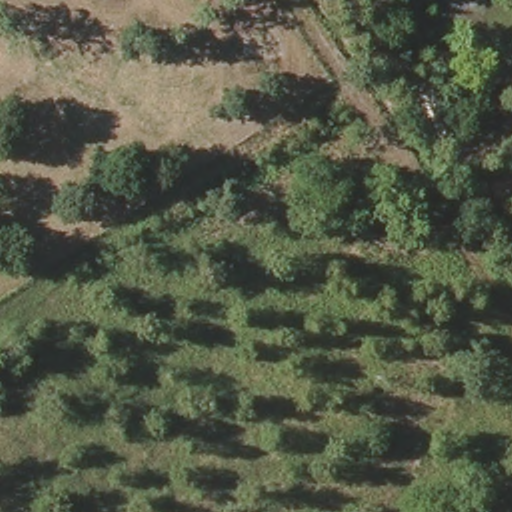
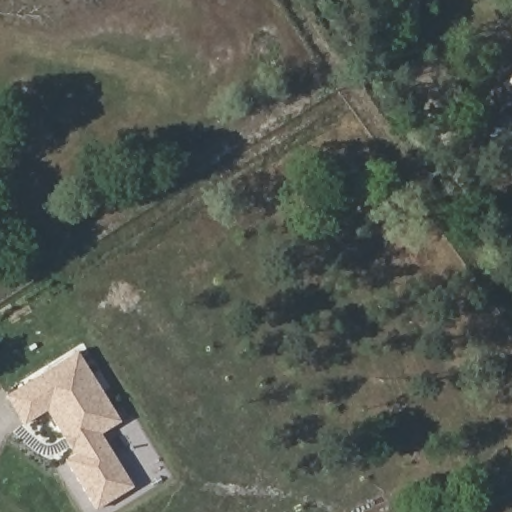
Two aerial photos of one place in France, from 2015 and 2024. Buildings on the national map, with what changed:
new [(85,355),(127,424),(107,436),(140,489),(102,512),(73,463),(82,458),(54,412),(31,426),(14,398),(85,355)]

